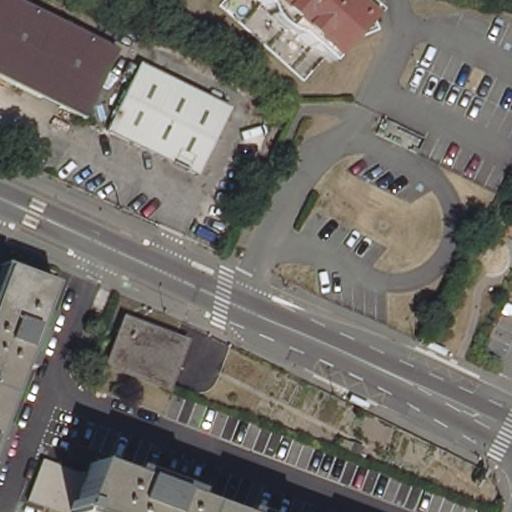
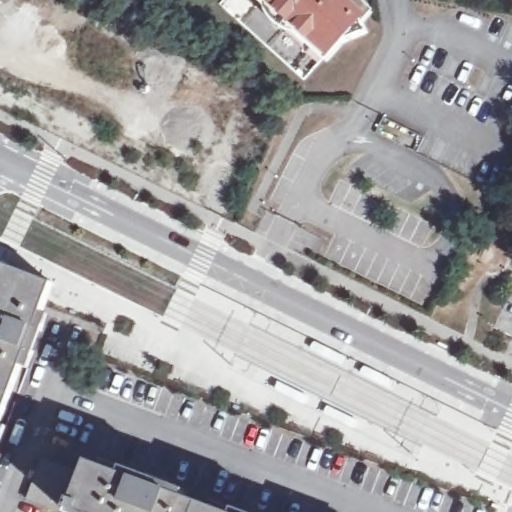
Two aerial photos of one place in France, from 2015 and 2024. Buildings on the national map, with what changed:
demolished [(20,0),(123,51),(88,120),(0,77),(0,0),(20,0)]
unchanged [(369,20),(376,36),(341,50),(337,54),(311,82),(229,5),(234,0),(367,0),(378,10),(369,20)]
demolished [(236,106),(202,175),(105,128),(138,57),(236,106)]
unchanged [(53,283),(43,311),(49,314),(31,364),(25,362),(1,424),(8,427),(0,448),(0,268),(3,262),(53,283)]
demolished [(109,361),(120,330),(128,334),(133,321),(183,340),(166,383),(109,361)]
unchanged [(91,478),(79,512),(56,512),(34,504),(50,462),(91,478)]
unchanged [(96,465),(141,483),(143,477),(194,497),(193,502),(219,512),(79,512),(91,478),(96,465)]

